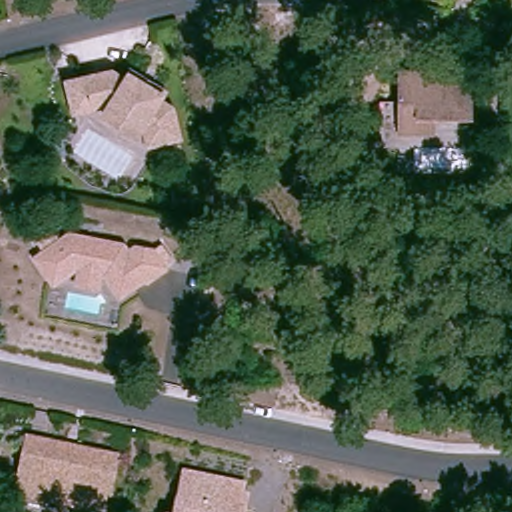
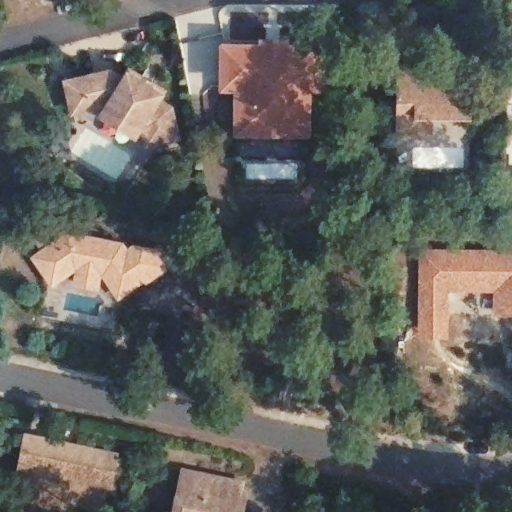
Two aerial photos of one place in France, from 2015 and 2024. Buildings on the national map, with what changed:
new [(263,50),(263,40),(286,41),(286,50),(322,50),(322,87),(306,87),(306,132),(241,131),(242,86),(226,86),(227,49),(263,50)]
unchanged [(398,134),(398,117),(399,70),(472,71),(472,117),(436,117),(436,135),(398,134)]
unchanged [(100,119),(104,112),(106,109),(102,107),(85,111),(79,82),(107,75),(121,83),(125,77),(157,96),(154,102),(167,111),(175,140),(145,147),(142,131),(139,129),(136,132),(132,138),(100,119)]
unchanged [(74,283),(77,268),(72,267),(49,283),(31,256),(65,233),(119,244),(124,251),(131,246),(149,249),(161,267),(143,280),(141,278),(115,296),(100,273),(95,272),(92,287),(74,283)]
new [(512,316),(493,316),(492,292),(450,292),(448,338),(418,337),(418,248),(512,249),(512,316)]
unchanged [(30,432),(113,450),(101,506),(18,488),(30,432)]
unchanged [(245,479),(238,512),(167,512),(168,510),(175,511),(185,466),(245,479)]

